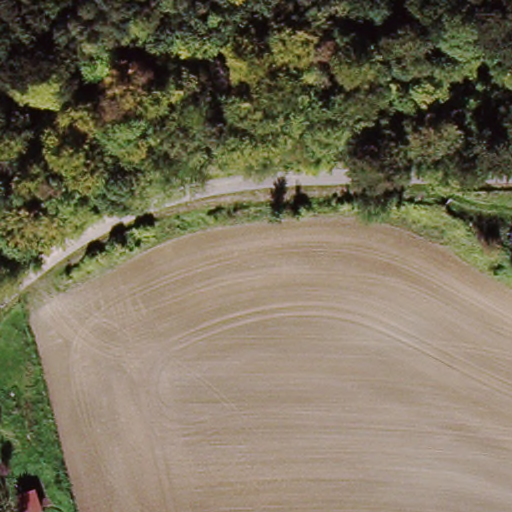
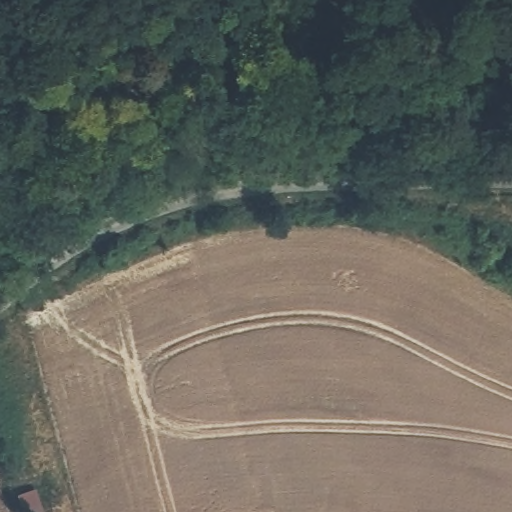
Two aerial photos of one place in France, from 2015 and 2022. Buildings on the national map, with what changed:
unchanged [(34,488),(44,512),(22,512),(15,493),(34,488)]

